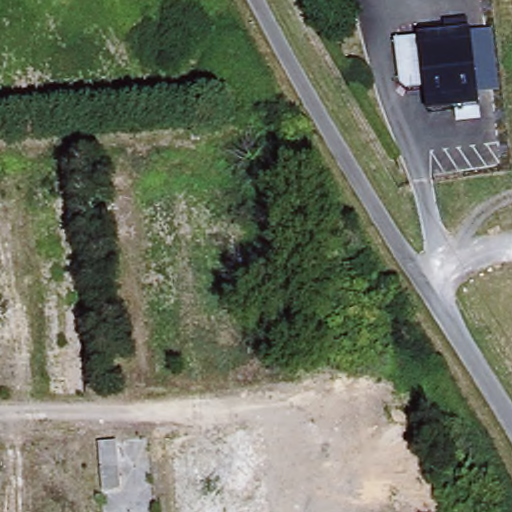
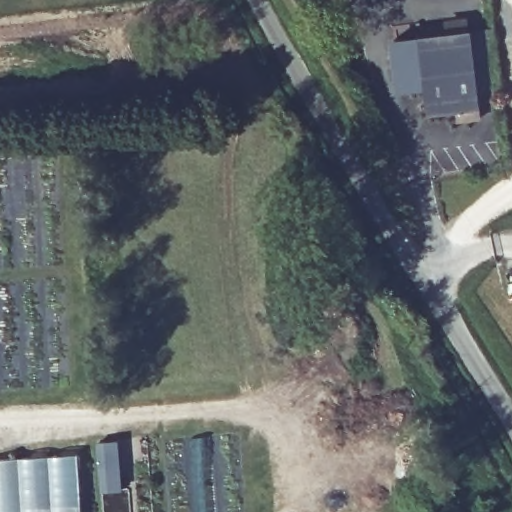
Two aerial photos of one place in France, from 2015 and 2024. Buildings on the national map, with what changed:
unchanged [(453,125),(452,112),(423,115),(421,93),(403,95),(395,89),(390,43),(466,34),(476,122),(453,125)]
new [(119,439),(123,488),(100,491),(94,441),(119,439)]
new [(77,452),(81,512),(20,512),(17,457),(77,452)]
new [(20,512),(0,512),(0,458),(17,457),(20,512)]
new [(123,488),(129,487),(132,512),(102,512),(100,491),(123,488)]

